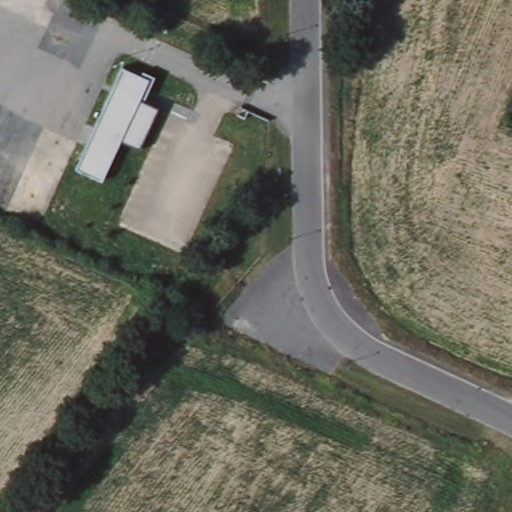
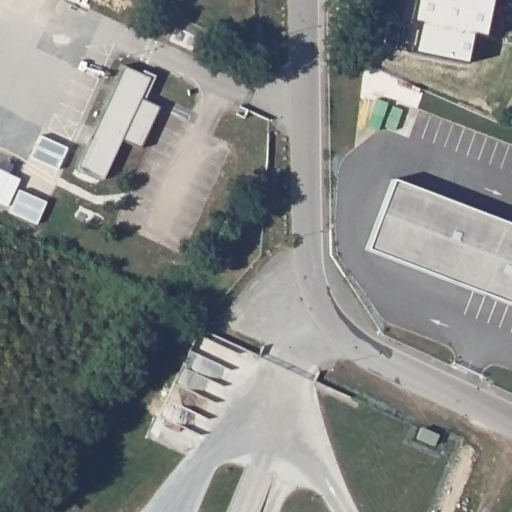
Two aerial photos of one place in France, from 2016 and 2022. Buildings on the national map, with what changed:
unchanged [(121,63),(140,72),(142,67),(153,72),(143,99),(157,104),(139,144),(118,136),(101,174),(75,165),(121,63)]
new [(365,250),(392,180),(512,226),(512,312),(480,294),(365,250)]

